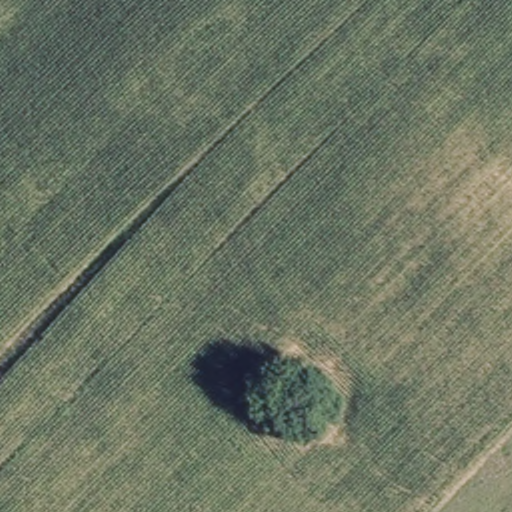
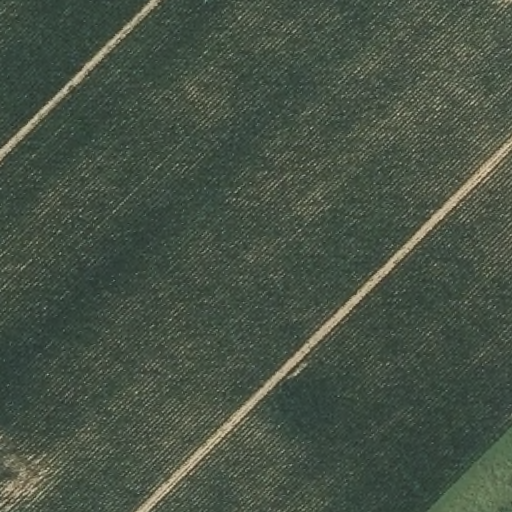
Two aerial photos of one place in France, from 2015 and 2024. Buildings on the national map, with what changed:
[]

